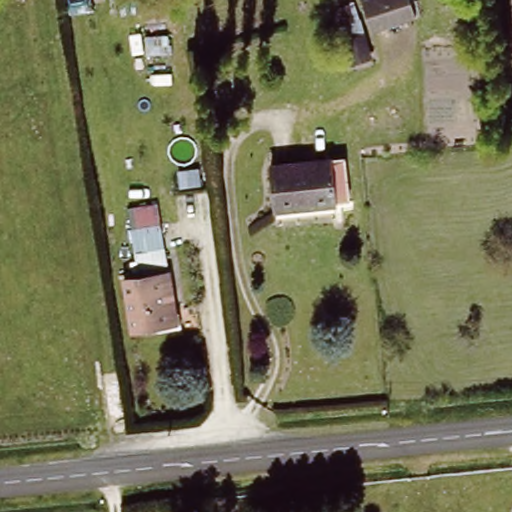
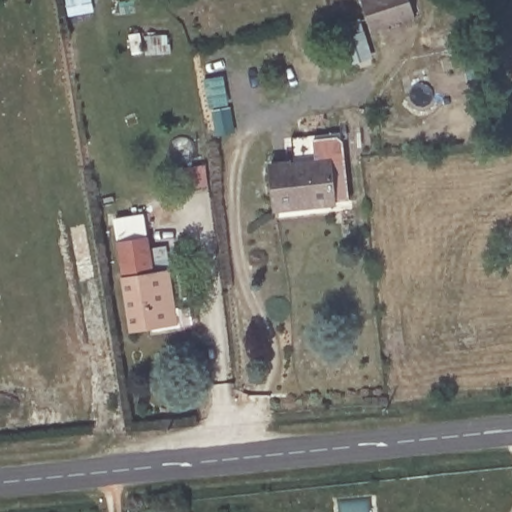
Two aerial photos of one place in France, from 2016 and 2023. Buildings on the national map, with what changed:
unchanged [(387,12),(387,29),(340,35),(338,5),(365,0),(405,0),(405,4),(387,12)]
unchanged [(351,192),(353,215),(278,222),(274,180),(336,174),(337,194),(351,192)]
unchanged [(161,224),(166,268),(143,271),(133,228),(161,224)]
unchanged [(168,275),(173,320),(132,325),(127,280),(168,275)]

